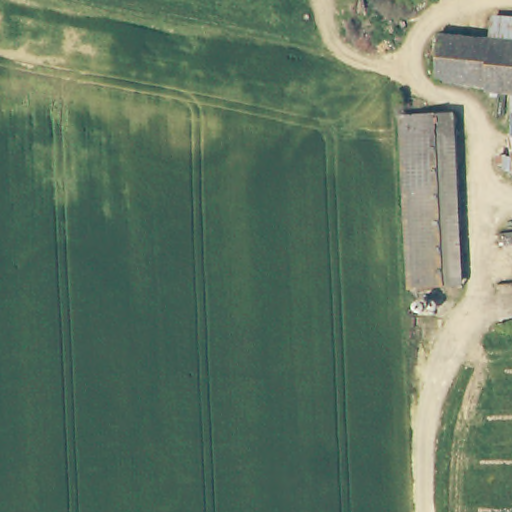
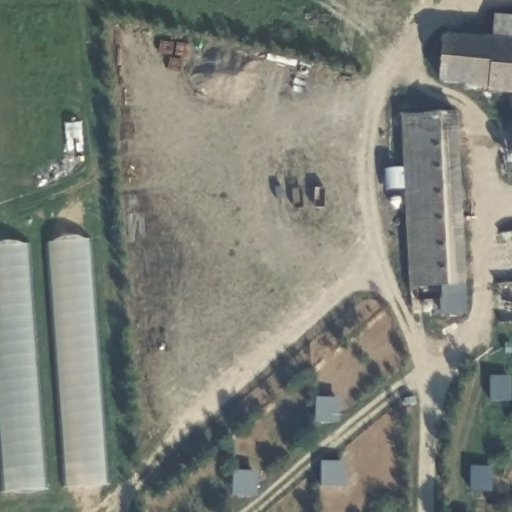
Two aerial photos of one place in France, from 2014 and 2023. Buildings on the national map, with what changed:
unchanged [(485,86),(436,82),(439,37),(489,40),(491,20),(512,20),(512,93),(484,91),(485,86)]
unchanged [(451,111),(458,284),(410,285),(400,111),(451,111)]
unchanged [(507,114),(512,113),(512,175),(511,175),(507,114)]
new [(104,485),(64,491),(44,243),(87,241),(104,485)]
new [(44,490),(2,494),(0,461),(0,247),(26,245),(44,490)]
new [(488,376),(511,376),(512,401),(490,402),(488,376)]
new [(315,398),(340,398),(340,422),(316,423),(315,398)]
new [(321,462),(345,461),(345,487),(320,487),(321,462)]
new [(469,466),(492,465),(492,491),(469,491),(469,466)]
new [(232,471),(256,471),(256,495),(232,495),(232,471)]

